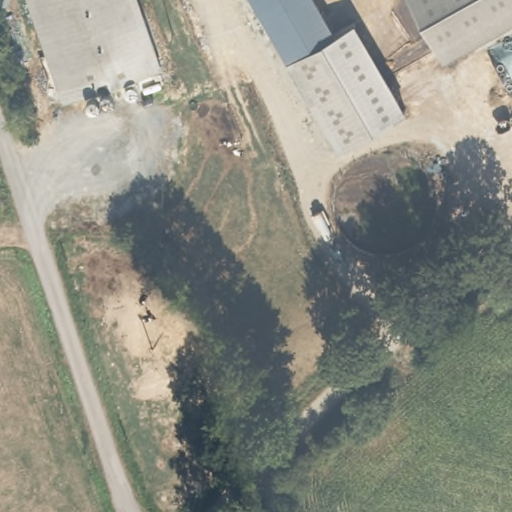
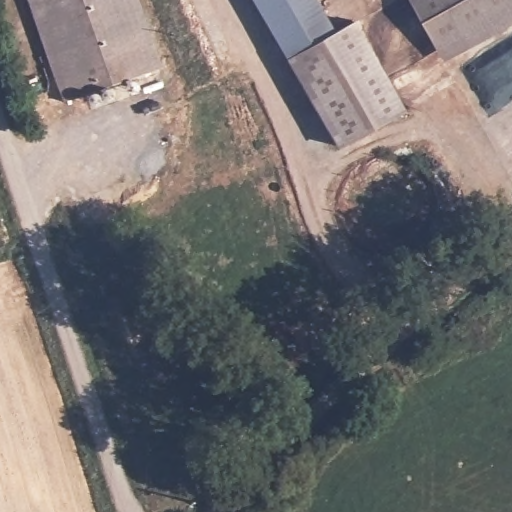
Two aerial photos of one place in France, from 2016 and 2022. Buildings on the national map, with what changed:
unchanged [(151,71),(63,103),(26,0),(127,0),(151,71)]
unchanged [(338,32),(293,58),(256,0),(319,0),(338,32)]
unchanged [(442,48),(415,0),(512,0),(512,8),(442,48)]
unchanged [(342,146),(293,58),(356,22),(406,109),(342,146)]

